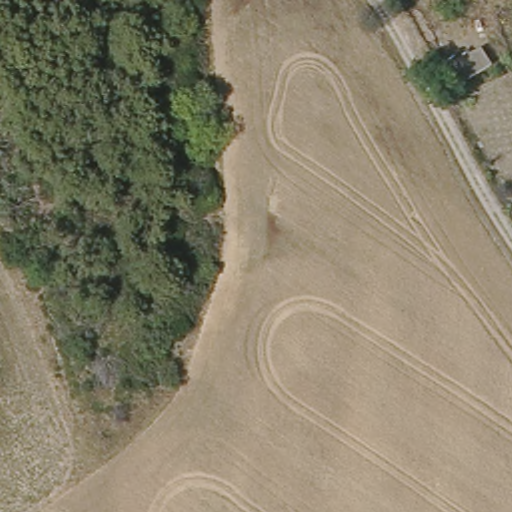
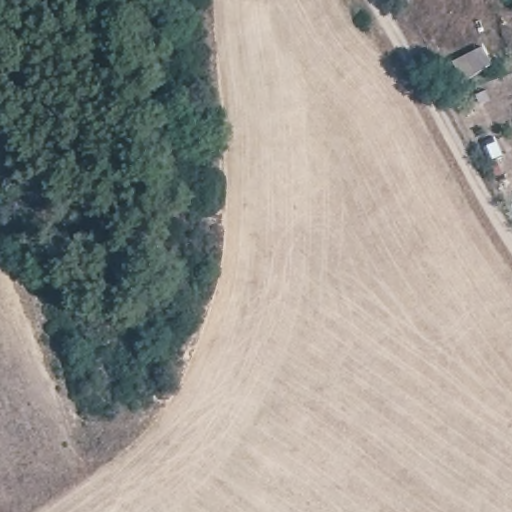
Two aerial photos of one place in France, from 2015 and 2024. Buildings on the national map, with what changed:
unchanged [(464,82),(451,59),(482,42),(495,67),(464,82)]

